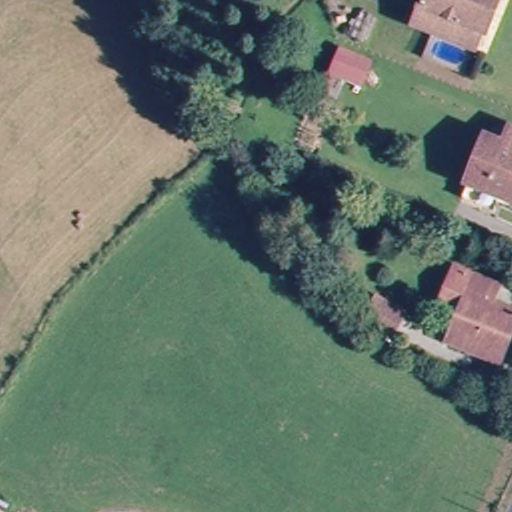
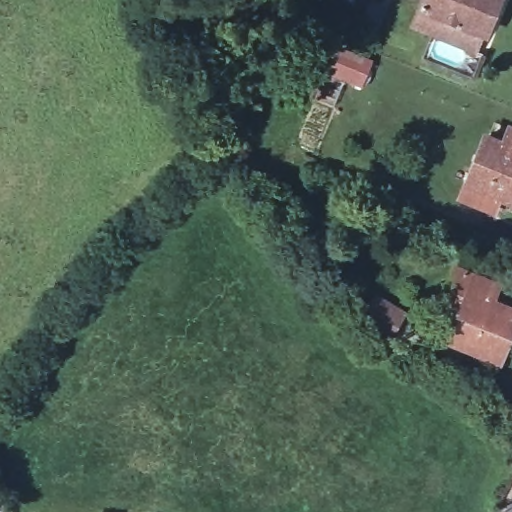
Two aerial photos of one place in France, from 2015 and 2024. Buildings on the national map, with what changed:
unchanged [(412,28),(422,0),(496,0),(484,31),(477,51),(433,36),(412,28)]
unchanged [(332,80),(341,57),(369,68),(360,91),(332,80)]
unchanged [(498,141),(504,124),(512,126),(512,193),(496,188),(489,209),(458,199),(481,135),(498,141)]
unchanged [(488,309),(512,318),(512,325),(494,368),(446,350),(470,285),(494,293),(488,309)]
unchanged [(369,324),(378,305),(402,313),(395,332),(369,324)]
unchanged [(9,512),(0,512),(0,502),(11,508),(9,512)]

